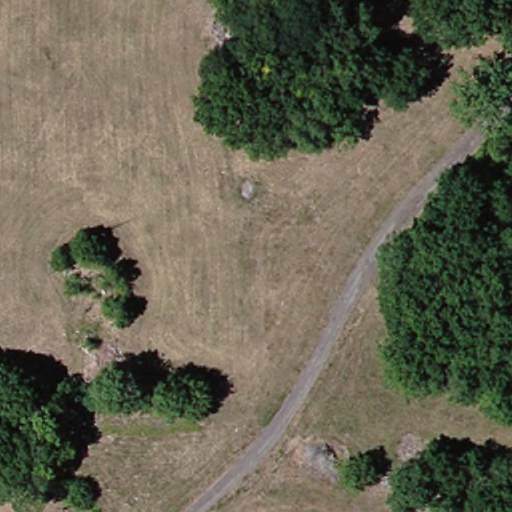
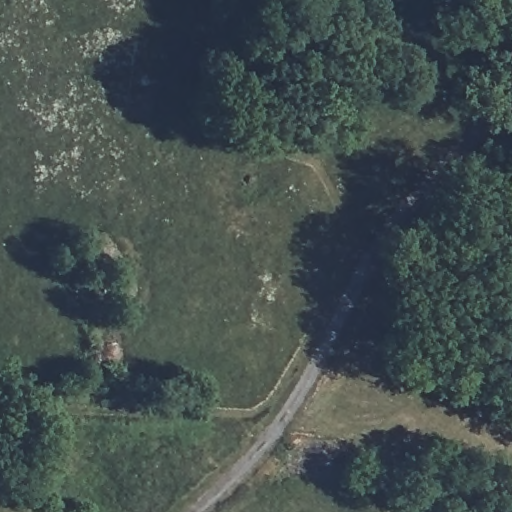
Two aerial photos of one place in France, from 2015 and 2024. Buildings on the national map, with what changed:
unchanged [(225,46),(242,46),(242,57),(225,57),(225,46)]

